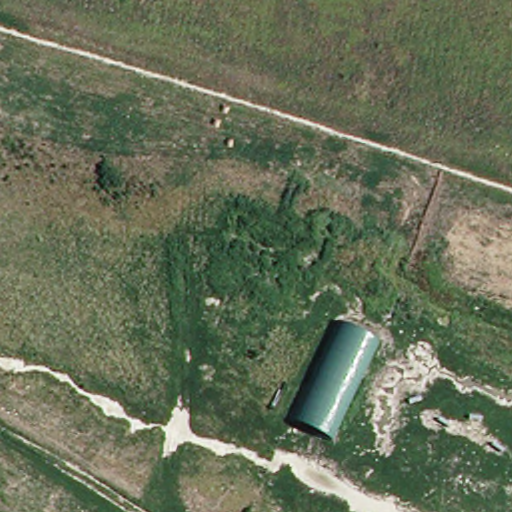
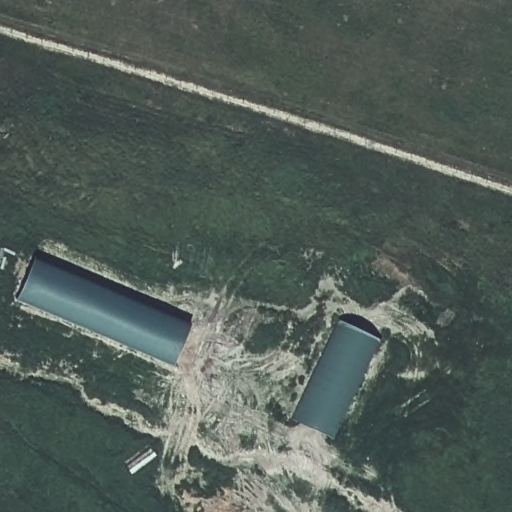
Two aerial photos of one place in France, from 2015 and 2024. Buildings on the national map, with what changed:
new [(17,300),(32,259),(188,326),(172,364),(17,300)]
unchanged [(287,409),(335,310),(376,332),(330,433),(287,409)]

